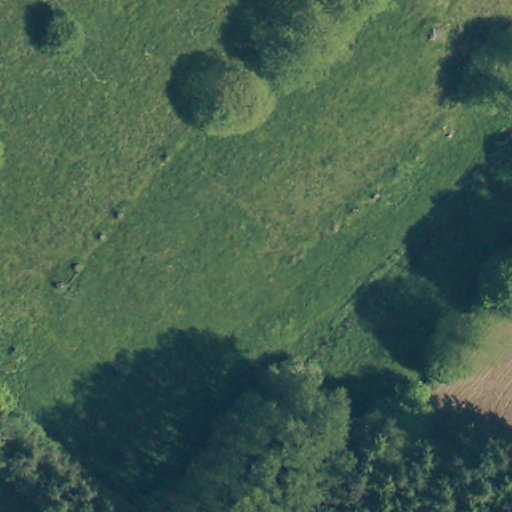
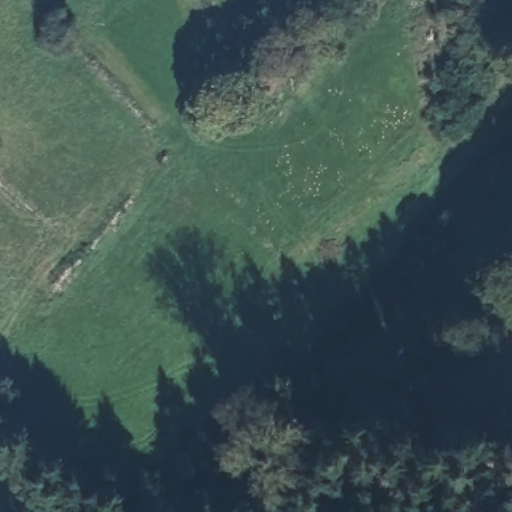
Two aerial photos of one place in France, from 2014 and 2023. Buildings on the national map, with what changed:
[]

